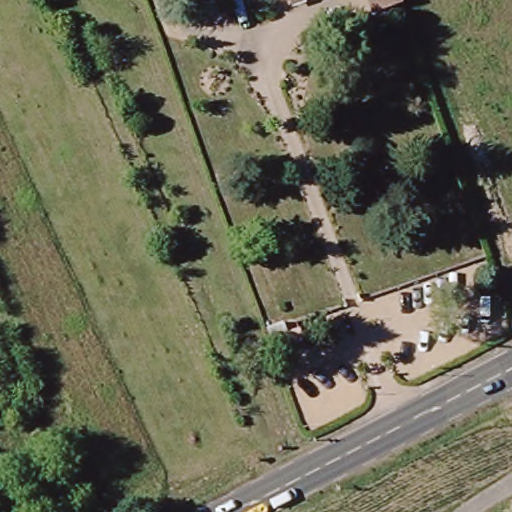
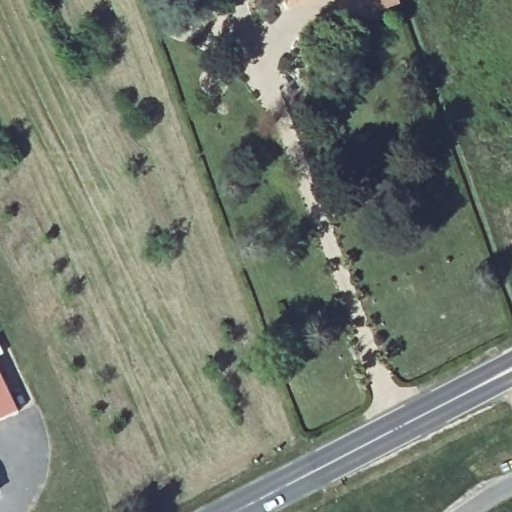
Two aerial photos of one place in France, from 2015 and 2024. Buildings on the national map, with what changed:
unchanged [(363,6),(360,0),(380,0),(363,6)]
new [(19,410),(0,420),(0,368),(19,410)]

